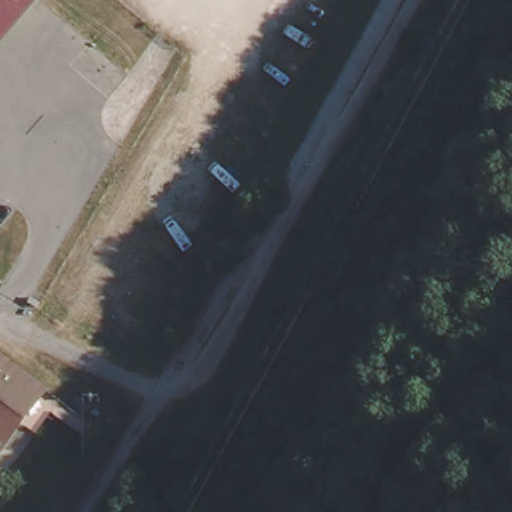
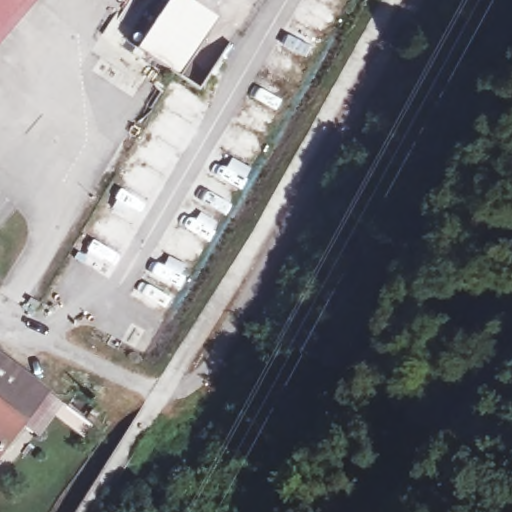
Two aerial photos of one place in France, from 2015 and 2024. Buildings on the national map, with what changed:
unchanged [(0,0),(31,0),(0,37),(0,0)]
new [(215,27),(183,73),(141,44),(172,0),(176,0),(215,27)]
unchanged [(93,443),(53,414),(38,434),(27,427),(0,464),(0,360),(100,431),(93,443)]

